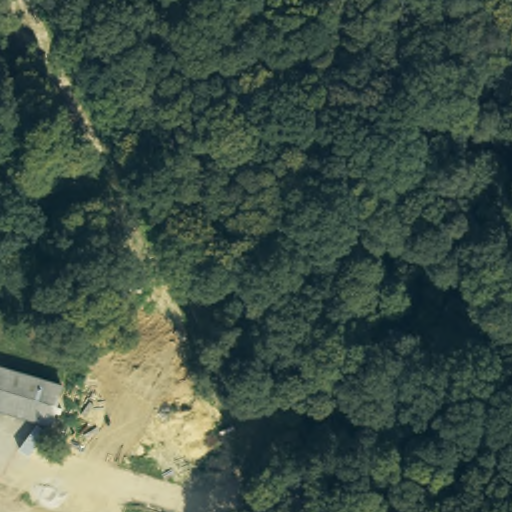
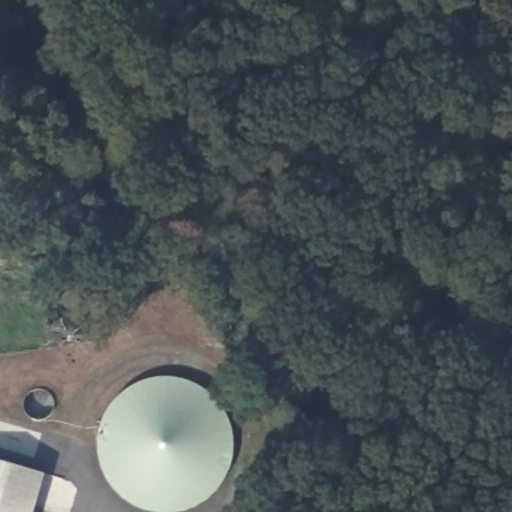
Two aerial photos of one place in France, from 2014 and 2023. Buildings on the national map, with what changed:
demolished [(0,412),(0,371),(67,392),(54,429),(0,412)]
new [(104,417),(109,407),(120,394),(131,386),(145,380),(161,376),(175,376),(191,381),(207,390),(218,401),(226,413),(232,429),(234,445),(232,459),(226,474),(218,488),(205,500),(192,506),(179,511),(166,512),(154,511),(141,508),(129,501),(118,492),(111,483),(105,473),(101,464),(99,451),(98,440),(104,417)]
demolished [(164,460),(117,448),(129,407),(177,422),(164,460)]
new [(34,512),(0,512),(0,461),(45,474),(34,512)]

